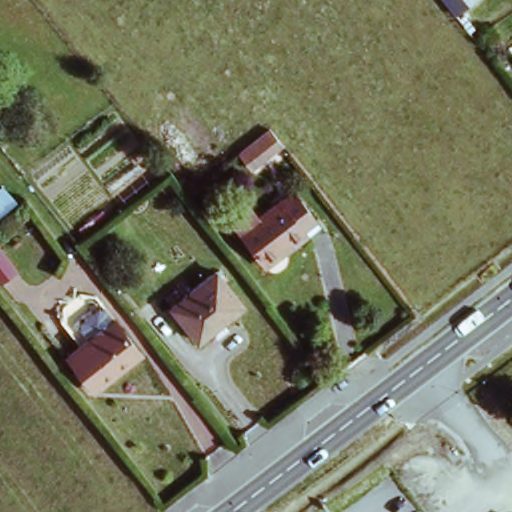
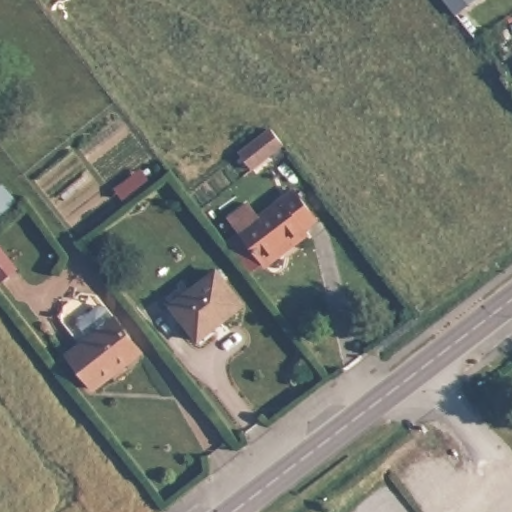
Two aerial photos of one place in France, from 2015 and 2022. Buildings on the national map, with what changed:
unchanged [(276,155),(252,174),(240,152),(261,135),(276,155)]
unchanged [(295,246),(291,242),(267,261),(243,230),(294,187),(316,214),(308,222),(314,228),(295,246)]
unchanged [(241,295),(219,315),(223,321),(199,342),(166,306),(213,265),(241,295)]
unchanged [(93,387),(68,354),(114,318),(140,351),(93,387)]

